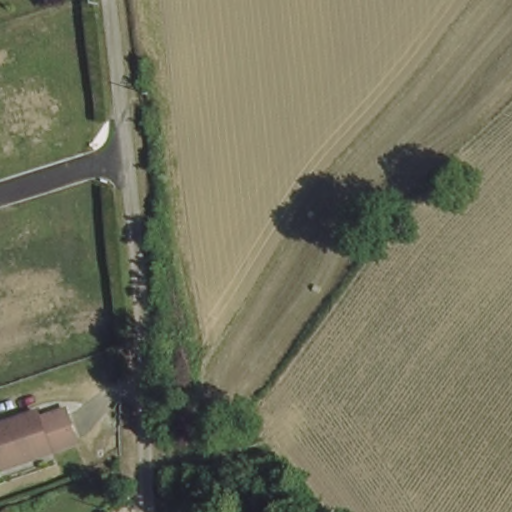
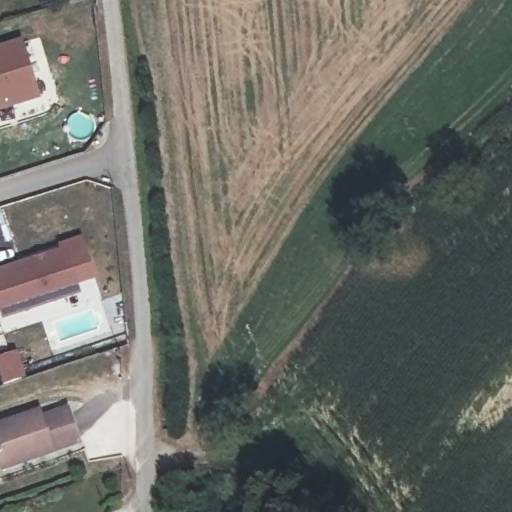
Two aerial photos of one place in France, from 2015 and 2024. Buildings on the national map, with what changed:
new [(12,36),(28,89),(0,98),(0,40),(12,36)]
new [(57,246),(71,287),(0,311),(0,266),(57,246)]
unchanged [(40,413),(42,418),(67,411),(78,447),(0,470),(0,424),(40,413)]

